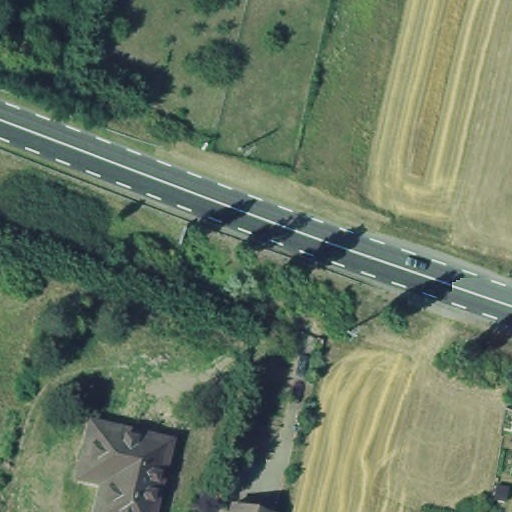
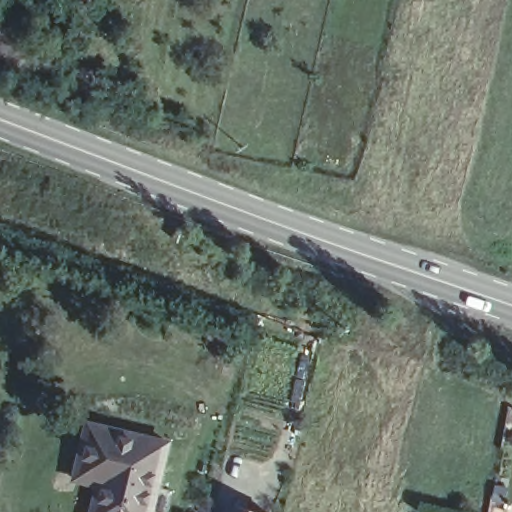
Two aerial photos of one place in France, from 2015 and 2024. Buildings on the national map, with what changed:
unchanged [(145,512),(91,512),(85,511),(94,476),(70,469),(75,448),(81,422),(103,427),(105,418),(163,434),(145,512)]
unchanged [(246,512),(222,512),(223,507),(246,512)]

